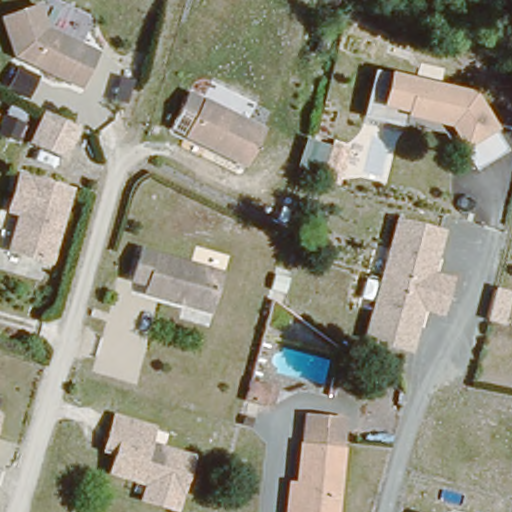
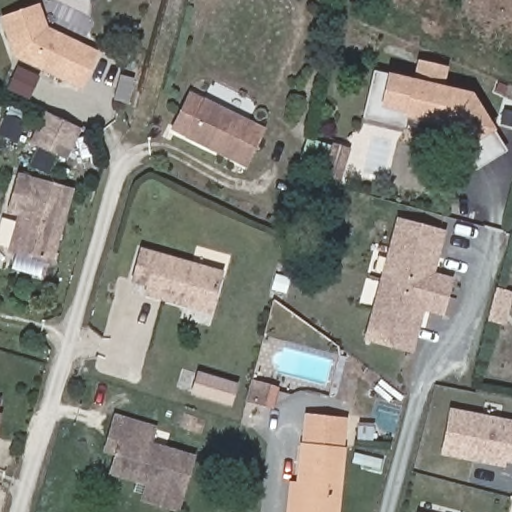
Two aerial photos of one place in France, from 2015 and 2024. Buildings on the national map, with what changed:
unchanged [(17,63),(1,26),(36,10),(46,34),(71,43),(99,53),(86,88),(72,82),(36,70),(27,66),(17,63)]
unchanged [(475,171),(462,149),(452,155),(440,134),(403,125),(402,128),(362,118),(373,71),(390,74),(472,91),(497,130),(507,151),(475,171)]
unchanged [(252,163),(188,138),(195,120),(181,114),(189,95),(267,125),(252,163)]
unchanged [(78,124),(66,156),(31,142),(44,110),(78,124)]
new [(333,147),(348,151),(343,169),(338,183),(324,179),(328,164),(333,147)]
unchanged [(0,250),(0,226),(4,212),(0,211),(0,196),(5,178),(57,194),(38,261),(0,250)]
unchanged [(446,231),(436,273),(452,277),(442,316),(423,312),(413,353),(363,341),(396,219),(446,231)]
unchanged [(201,312),(140,295),(143,283),(125,278),(131,252),(211,275),(201,312)]
new [(201,375),(237,385),(232,405),(196,395),(201,375)]
unchanged [(269,408),(245,403),(250,380),(277,387),(269,408)]
new [(512,419),(512,465),(442,451),(452,407),(512,419)]
unchanged [(302,477),(307,439),(310,440),(313,414),(346,418),(342,441),(346,441),(336,512),(288,512),(293,476),(302,477)]
unchanged [(137,433),(135,445),(181,458),(169,510),(133,500),(137,476),(128,474),(121,480),(102,475),(106,455),(95,452),(99,437),(102,423),(137,433)]

